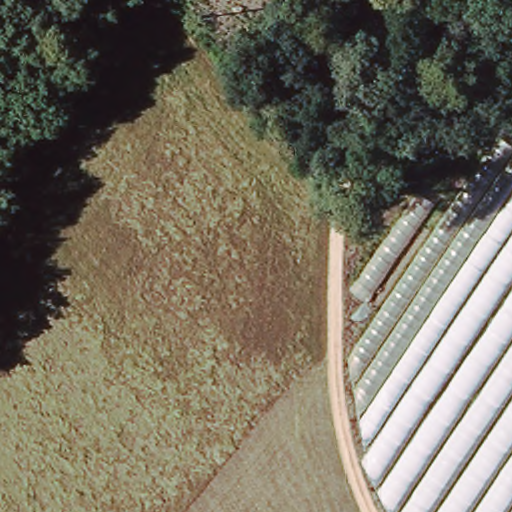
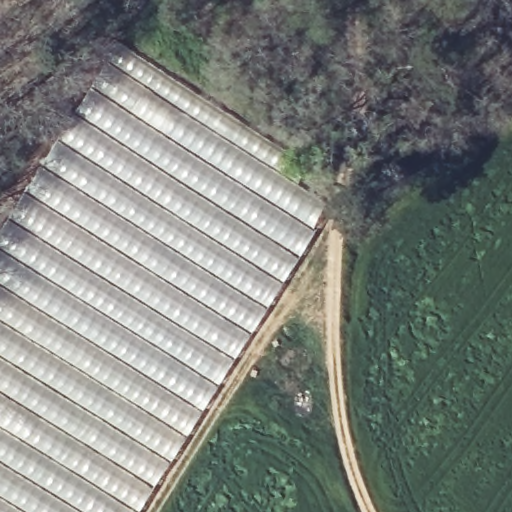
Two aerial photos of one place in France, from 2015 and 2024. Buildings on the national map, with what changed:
new [(40,164),(105,57),(134,76),(180,104),(211,126),(329,204),(315,229),(283,283),(170,466),(140,512),(0,512),(0,232),(40,164)]
unchanged [(376,488),(362,442),(348,352),(352,287),(415,190),(512,134),(512,512),(389,512),(376,488)]

